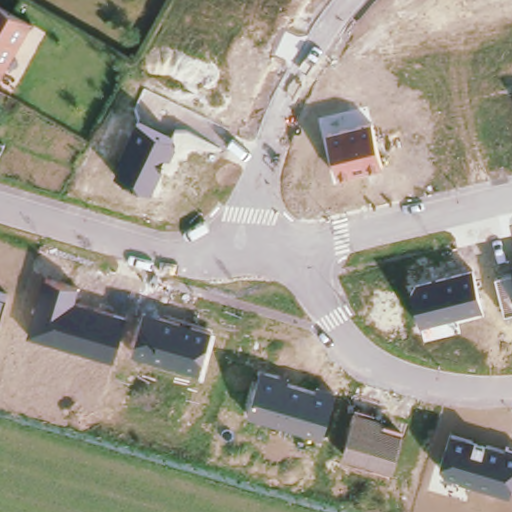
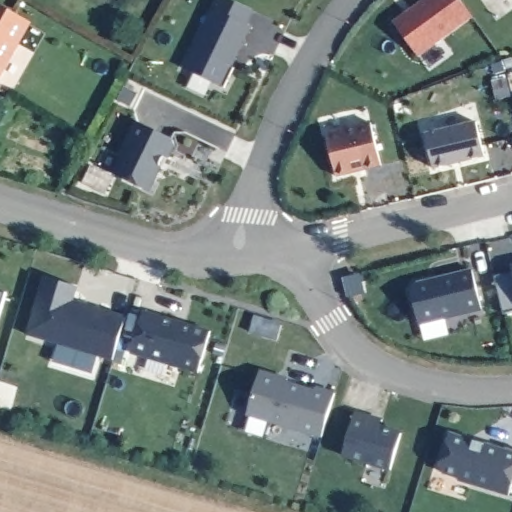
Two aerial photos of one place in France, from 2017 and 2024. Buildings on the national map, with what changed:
new [(248,24),(253,26),(233,66),(236,68),(226,88),(186,69),(218,0),(234,0),(254,10),(248,24)]
new [(421,56),(395,22),(425,0),(462,0),(474,17),(421,56)]
unchanged [(0,66),(0,5),(26,20),(0,66)]
unchanged [(173,139),(175,146),(170,159),(166,157),(153,192),(114,174),(122,156),(119,155),(136,121),(173,139)]
unchanged [(372,121),(381,166),(337,177),(326,133),(372,121)]
new [(471,161),(435,169),(427,134),(476,121),(484,152),(471,161)]
unchanged [(420,325),(412,289),(416,282),(473,269),(482,310),(420,325)]
unchanged [(512,272),(512,312),(504,314),(496,277),(512,272)]
unchanged [(78,286),(75,301),(126,315),(113,360),(26,335),(44,277),(78,286)]
unchanged [(0,315),(0,291),(6,293),(0,315)]
unchanged [(211,330),(198,373),(133,355),(144,311),(211,330)]
unchanged [(261,370),(288,378),(286,382),(316,390),(318,386),(336,391),(324,439),(248,415),(261,370)]
unchanged [(394,473),(343,457),(355,412),(382,420),(381,426),(403,433),(394,473)]
unchanged [(504,449),(506,446),(512,448),(512,486),(509,495),(459,481),(459,478),(444,474),(440,466),(451,433),(504,449)]

